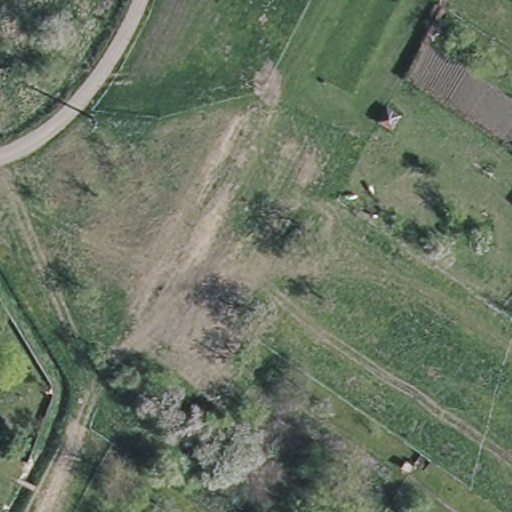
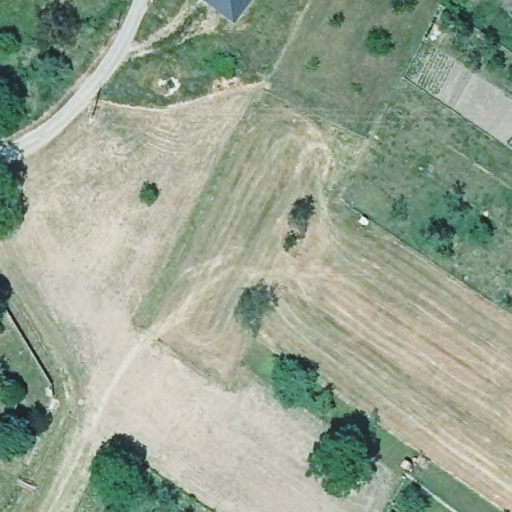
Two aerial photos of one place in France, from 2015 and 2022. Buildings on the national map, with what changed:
new [(202,0),(254,0),(235,25),(202,0)]

